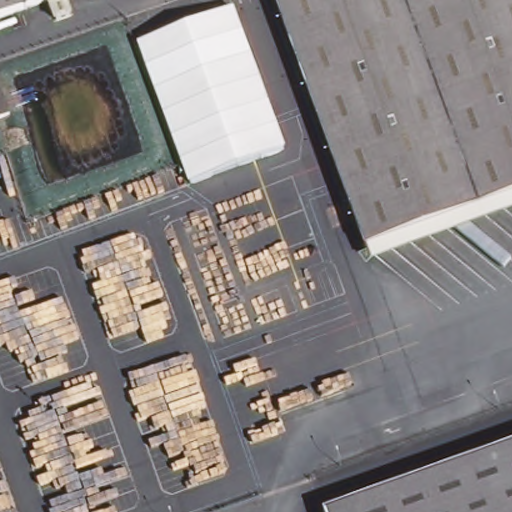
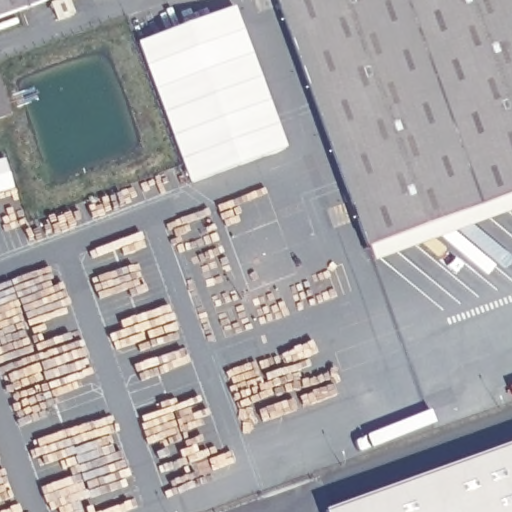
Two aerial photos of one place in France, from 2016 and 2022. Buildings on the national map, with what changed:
unchanged [(40,1),(0,16),(0,0),(45,0),(40,1)]
unchanged [(487,212),(485,210),(478,206),(468,218),(461,213),(451,226),(443,220),(432,232),(425,227),(414,238),(407,233),(395,247),(386,241),(379,250),(376,253),(368,249),(353,208),(347,190),(322,119),(308,81),(296,49),(278,0),(512,0),(512,193),(498,198),(487,212)]
unchanged [(238,8),(290,154),(193,186),(139,43),(238,8)]
unchanged [(1,69),(20,109),(0,119),(0,70),(1,69)]
unchanged [(512,442),(512,512),(322,512),(321,510),(395,484),(512,442)]

